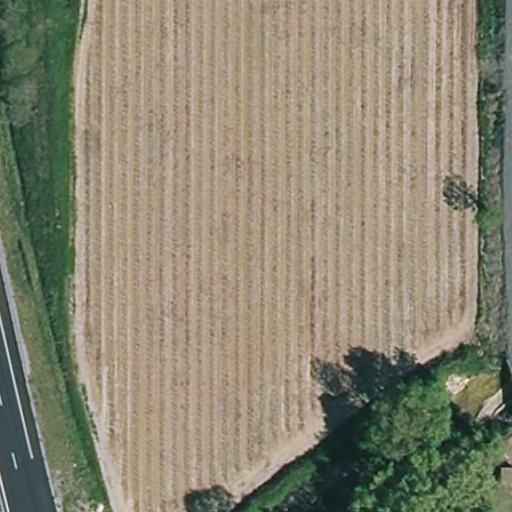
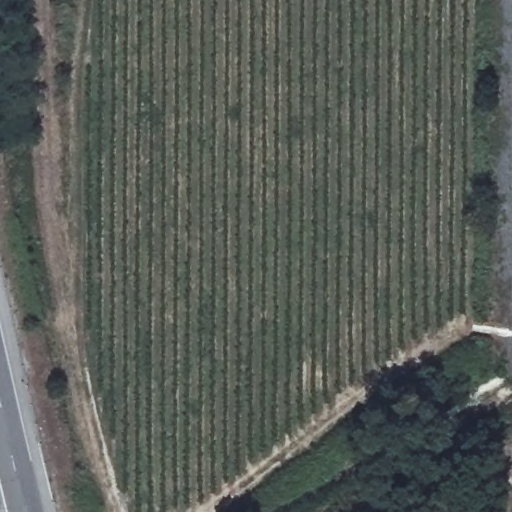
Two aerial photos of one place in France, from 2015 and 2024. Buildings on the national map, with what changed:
unchanged [(500,470),(512,470),(512,486),(500,486),(500,470)]

